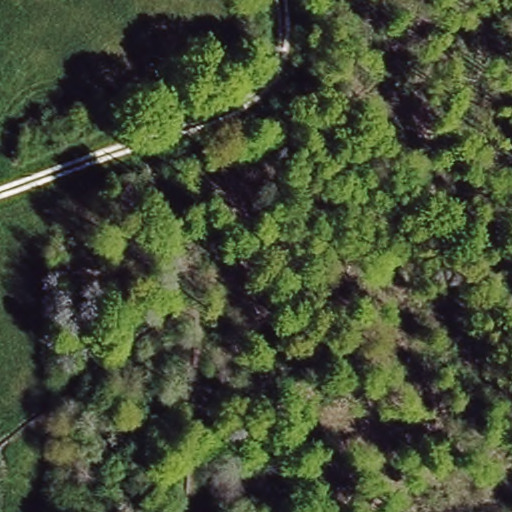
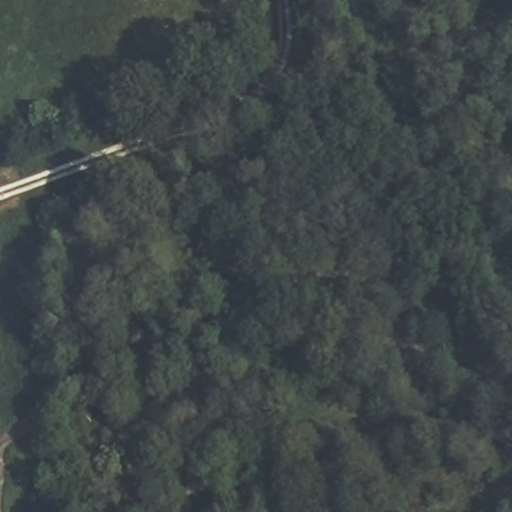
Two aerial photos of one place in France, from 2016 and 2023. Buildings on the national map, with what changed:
[]

